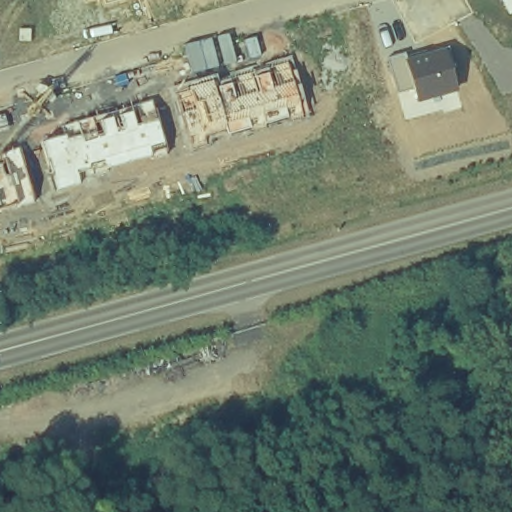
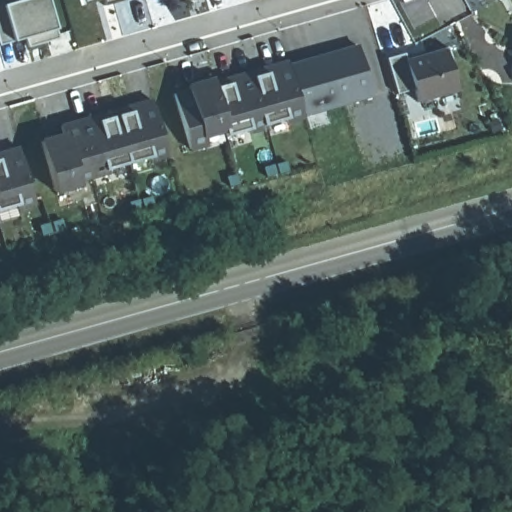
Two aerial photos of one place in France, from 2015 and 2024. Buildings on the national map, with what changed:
new [(65,38),(57,40),(27,47),(24,37),(12,40),(0,44),(0,0),(54,0),(65,38)]
unchanged [(106,2),(105,0),(113,0),(106,2)]
unchanged [(496,0),(500,0),(497,2),(496,0)]
new [(290,59),(357,44),(372,97),(307,112),(290,59)]
unchanged [(413,89),(398,94),(387,59),(406,52),(408,59),(446,47),(459,91),(418,102),(413,89)]
unchanged [(170,90),(290,59),(307,112),(208,139),(210,146),(190,153),(170,90)]
unchanged [(42,144),(65,137),(61,127),(150,100),(155,121),(165,152),(108,169),(105,162),(78,170),(81,183),(55,191),(42,144)]
unchanged [(0,154),(17,149),(33,202),(0,208),(0,154)]

